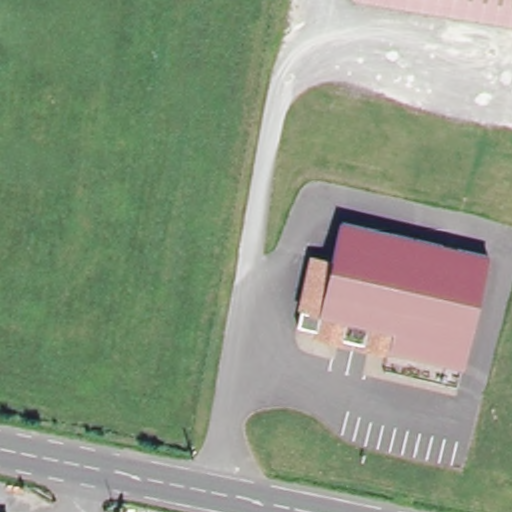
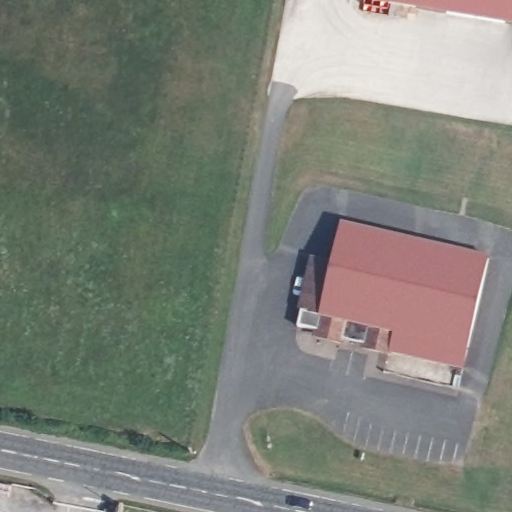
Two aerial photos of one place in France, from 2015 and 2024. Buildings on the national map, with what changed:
unchanged [(354,0),(512,0),(512,24),(354,0)]
unchanged [(345,337),(344,339),(318,333),(319,329),(299,324),(314,257),(334,261),(343,220),(491,252),(471,345),(396,329),(392,348),(392,349),(367,343),(367,341),(345,337)]
unchanged [(467,364),(392,348),(396,329),(471,345),(467,364)]

